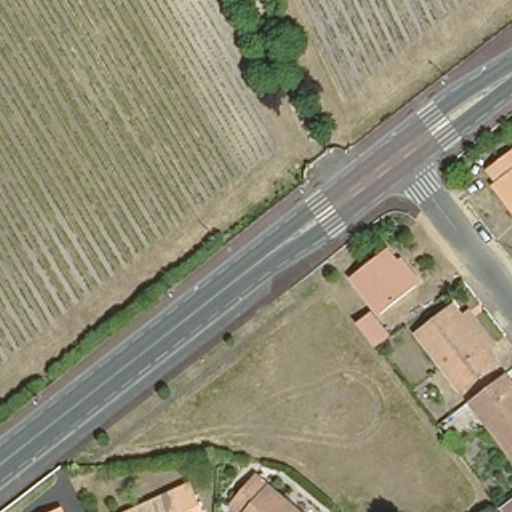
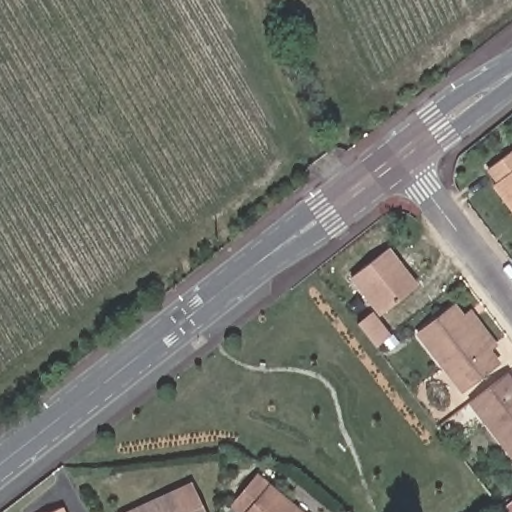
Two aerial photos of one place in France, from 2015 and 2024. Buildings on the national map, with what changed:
unchanged [(496,183),(486,170),(510,151),(512,153),(512,214),(491,187),(496,183)]
unchanged [(356,271),(390,244),(402,258),(407,254),(425,277),(420,280),(385,307),(356,271)]
unchanged [(363,317),(377,307),(395,330),(381,341),(363,317)]
unchanged [(493,373),(461,397),(418,342),(453,314),(461,325),(467,320),(493,352),(486,356),(498,370),(493,373)]
unchanged [(483,399),(502,384),(503,383),(506,381),(512,389),(512,463),(470,409),(483,399)]
unchanged [(183,481),(198,512),(118,512),(166,489),(183,481)]
unchanged [(257,482),(292,512),(235,512),(233,511),(257,482)]
unchanged [(59,512),(52,512),(57,509),(59,512)]

